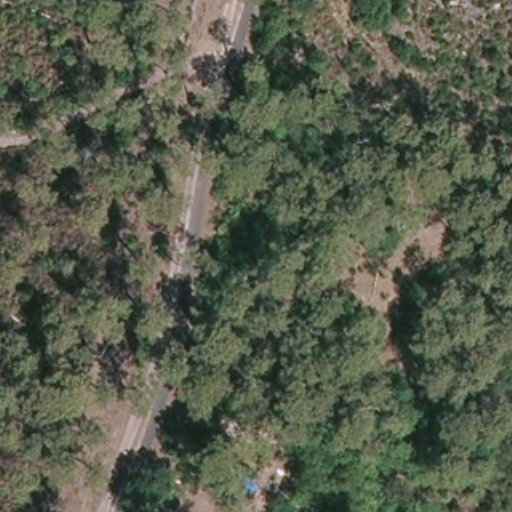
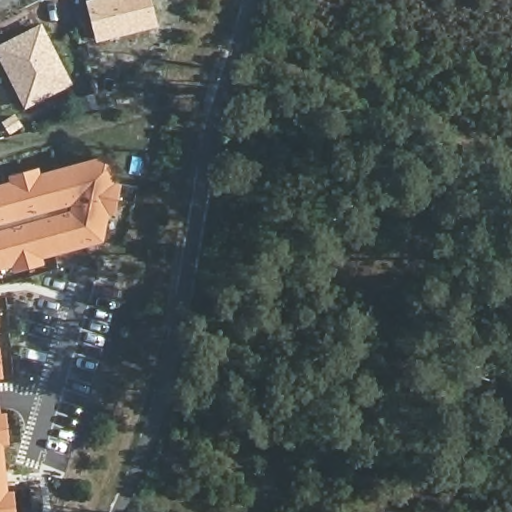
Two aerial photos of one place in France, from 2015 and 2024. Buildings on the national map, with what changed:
new [(152,0),(158,25),(96,41),(86,1),(90,0),(152,0)]
new [(55,94),(30,107),(2,51),(44,30),(65,70),(73,85),(55,94)]
new [(115,167),(100,239),(0,266),(0,186),(106,158),(115,167)]
new [(0,444),(7,512),(0,512),(0,444)]

